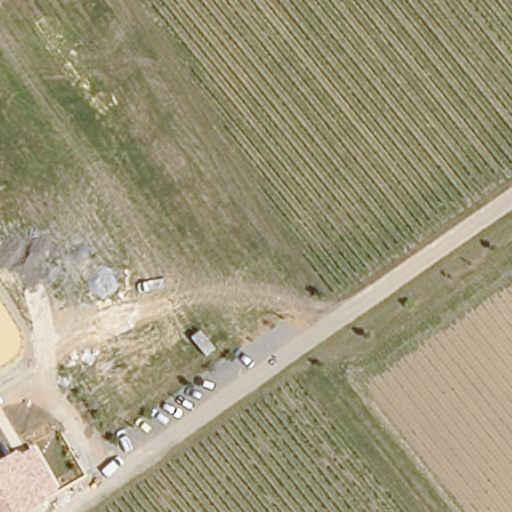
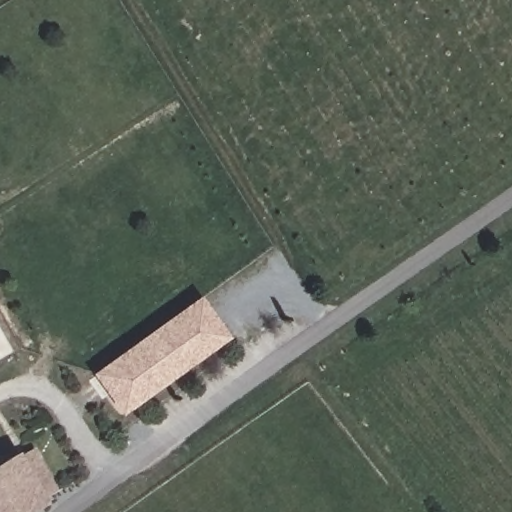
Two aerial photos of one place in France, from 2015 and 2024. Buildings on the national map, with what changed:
new [(229,338),(123,414),(93,372),(198,296),(229,338)]
unchanged [(15,451),(17,454),(32,444),(57,487),(43,495),(45,500),(25,512),(0,512),(0,460),(15,451)]

